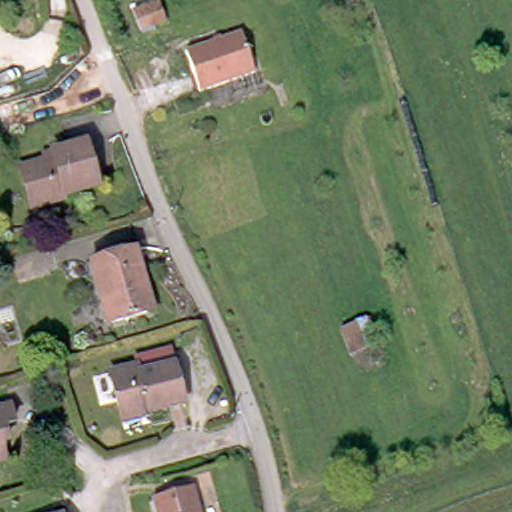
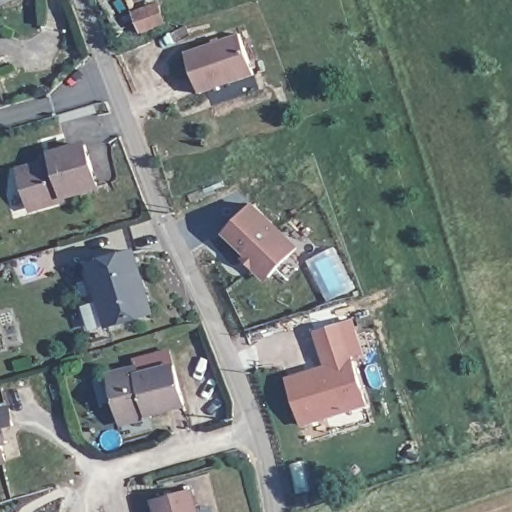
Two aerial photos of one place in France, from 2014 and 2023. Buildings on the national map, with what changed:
unchanged [(125,15),(144,8),(152,5),(160,25),(152,28),(133,35),(125,15)]
unchanged [(200,93),(185,49),(239,29),(255,71),(200,93)]
unchanged [(95,185),(62,194),(63,198),(30,208),(18,169),(43,161),(42,155),(50,153),(83,143),(95,185)]
new [(224,235),(255,204),(299,247),(265,283),(244,260),(245,258),(224,235)]
unchanged [(147,310),(111,320),(94,260),(136,247),(142,268),(154,308),(147,310)]
new [(321,369),(322,374),(329,372),(327,367),(352,359),(366,404),(302,424),(287,379),(321,369)]
unchanged [(122,414),(121,409),(111,371),(138,364),(140,371),(175,362),(184,396),(149,404),(150,407),(122,414)]
unchanged [(5,404),(9,421),(0,423),(0,405),(5,404)]
unchanged [(3,437),(0,438),(0,425),(3,437)]
unchanged [(0,455),(0,450),(2,455),(0,455)]
unchanged [(196,489),(201,512),(160,512),(157,498),(196,489)]

